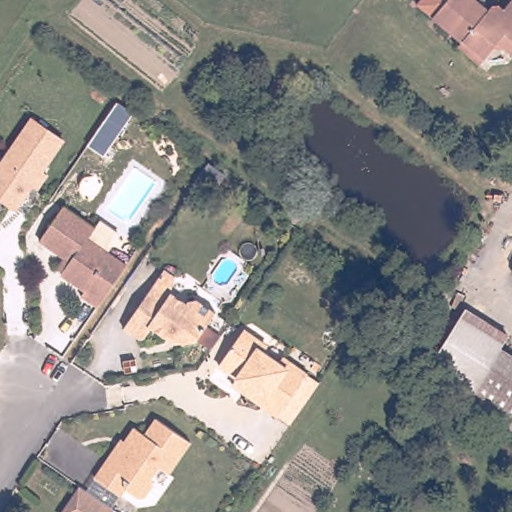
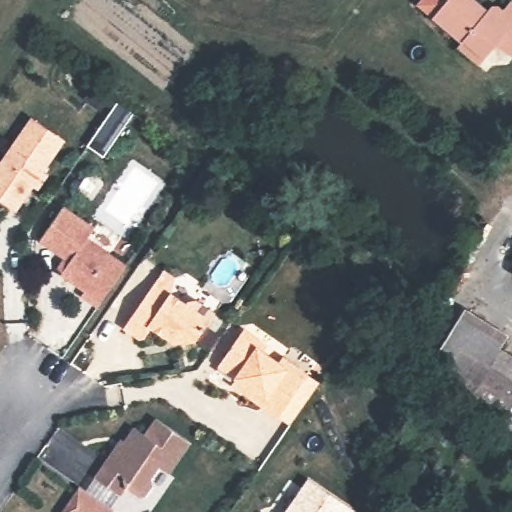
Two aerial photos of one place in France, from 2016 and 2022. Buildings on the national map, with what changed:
unchanged [(417,3),(420,0),(449,0),(435,15),(417,3)]
unchanged [(452,0),(485,0),(494,7),(498,2),(508,9),(512,5),(512,51),(503,44),(491,59),(438,17),(452,0)]
unchanged [(135,116),(105,159),(87,147),(117,105),(135,116)]
unchanged [(0,205),(0,157),(25,121),(56,142),(35,174),(41,177),(35,187),(29,183),(10,211),(0,205)]
unchanged [(85,291),(62,275),(71,262),(42,244),(66,210),(94,230),(89,240),(128,267),(100,308),(81,296),(85,291)]
unchanged [(169,296),(171,293),(187,305),(196,303),(214,315),(195,341),(191,338),(180,343),(166,335),(165,337),(152,330),(145,341),(126,329),(155,286),(169,296)]
unchanged [(512,333),(512,336),(505,348),(512,353),(512,425),(474,401),(436,365),(471,307),(512,333)]
unchanged [(232,392),(236,386),(210,367),(229,338),(240,336),(246,340),(250,345),(251,351),(267,363),(272,358),(296,373),(309,383),(301,395),(280,425),(266,415),(232,392)]
unchanged [(106,460),(110,462),(133,428),(143,435),(154,420),(190,442),(167,473),(157,466),(149,478),(149,485),(145,490),(140,495),(132,495),(126,492),(123,488),(117,495),(92,478),(106,460)]
new [(307,477),(351,507),(348,512),(284,512),(307,477)]
unchanged [(85,486),(117,508),(114,512),(66,512),(85,486)]

